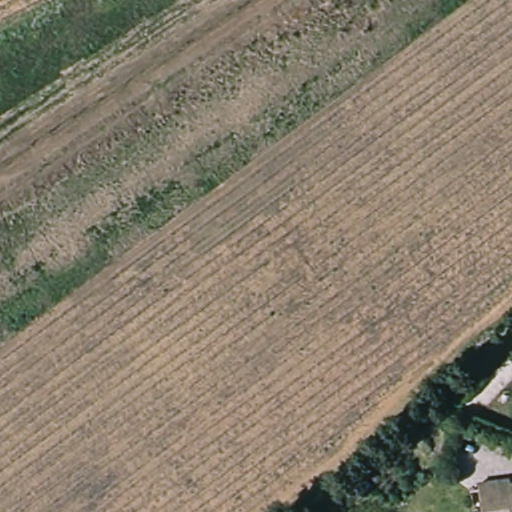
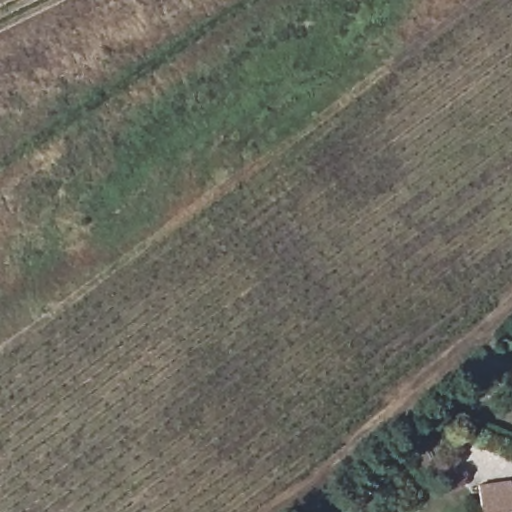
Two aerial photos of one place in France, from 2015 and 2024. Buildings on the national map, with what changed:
unchanged [(508,478),(509,483),(512,482),(512,512),(479,512),(477,482),(508,478)]

